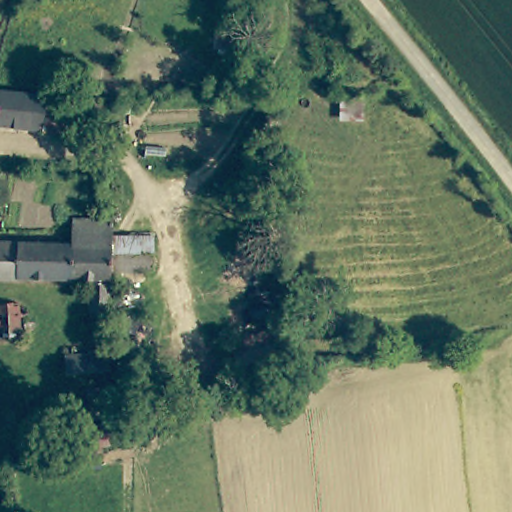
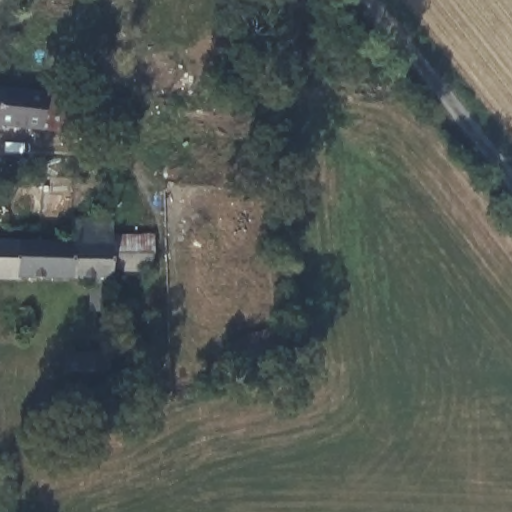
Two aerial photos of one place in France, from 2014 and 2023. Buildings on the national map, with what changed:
unchanged [(37,91),(33,127),(0,123),(0,88),(37,91)]
unchanged [(73,95),(70,131),(33,127),(37,91),(73,95)]
unchanged [(110,278),(110,292),(93,292),(93,276),(71,275),(72,241),(73,229),(73,217),(112,217),(112,234),(113,267),(114,278),(110,278)]
unchanged [(112,234),(152,234),(151,267),(113,267),(112,234)]
unchanged [(18,273),(17,279),(0,279),(0,239),(72,241),(71,275),(18,273)]
unchanged [(19,304),(23,342),(2,344),(0,318),(0,304),(19,304)]
unchanged [(279,331),(286,368),(239,377),(232,342),(279,331)]
unchanged [(67,378),(66,360),(109,357),(109,375),(67,378)]
unchanged [(86,426),(82,412),(112,404),(116,418),(86,426)]
unchanged [(64,434),(113,421),(117,441),(69,452),(64,434)]

